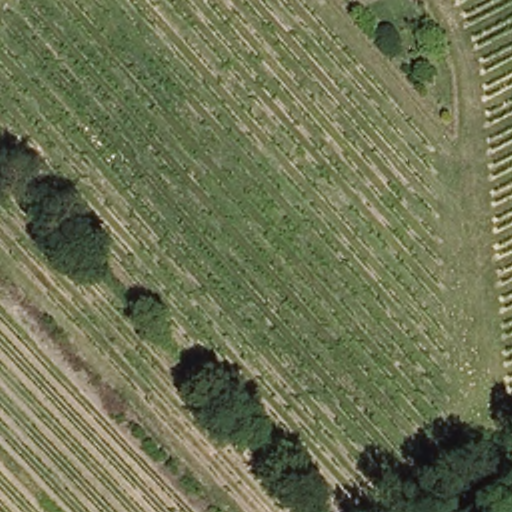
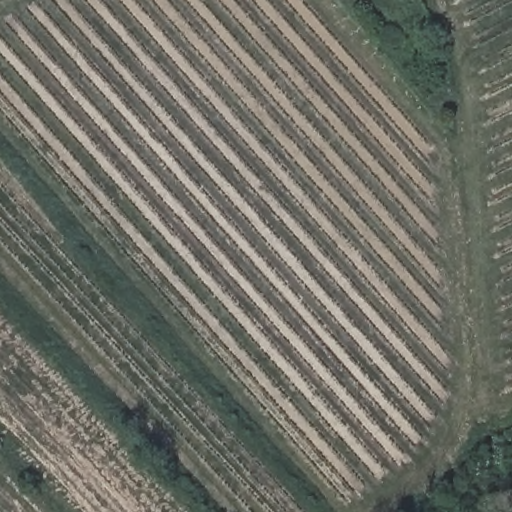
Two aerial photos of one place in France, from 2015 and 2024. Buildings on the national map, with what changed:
[]

